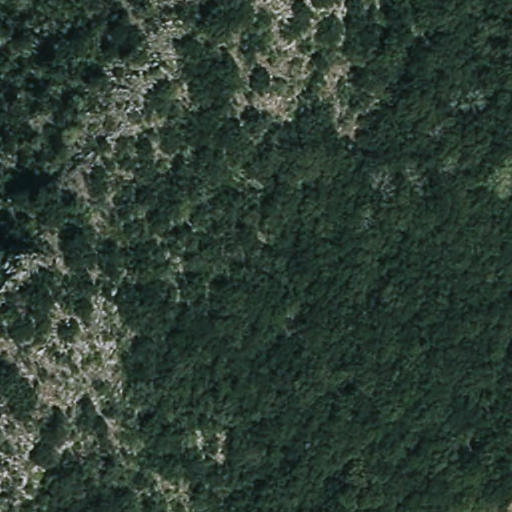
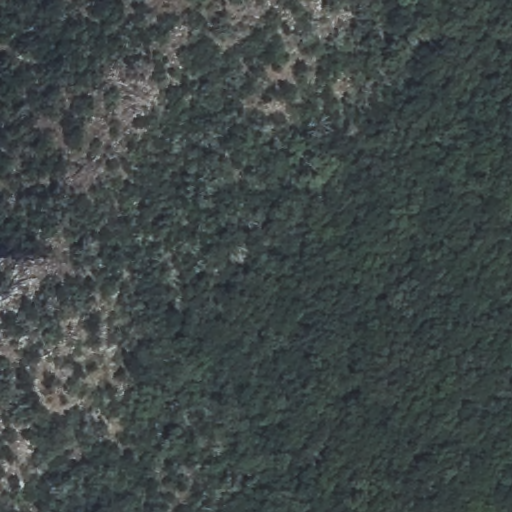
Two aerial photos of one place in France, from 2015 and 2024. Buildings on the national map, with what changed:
[]

